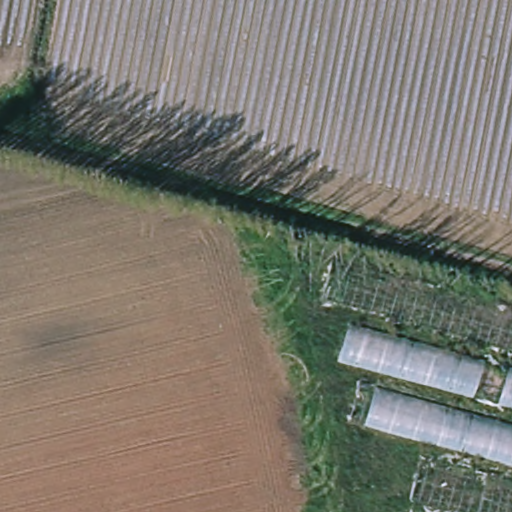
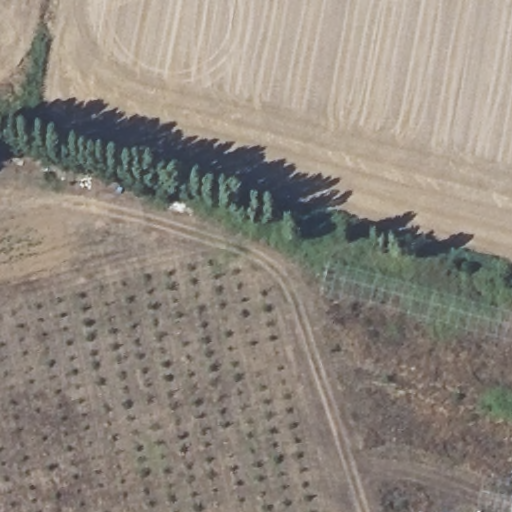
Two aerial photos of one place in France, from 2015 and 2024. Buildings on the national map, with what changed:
demolished [(420,512),(433,450),(347,430),(322,257),(512,309),(512,512),(420,512)]
new [(512,481),(512,512),(477,512),(486,475),(512,481)]

